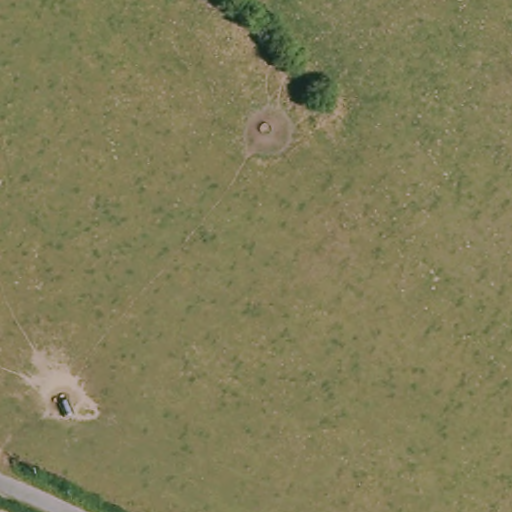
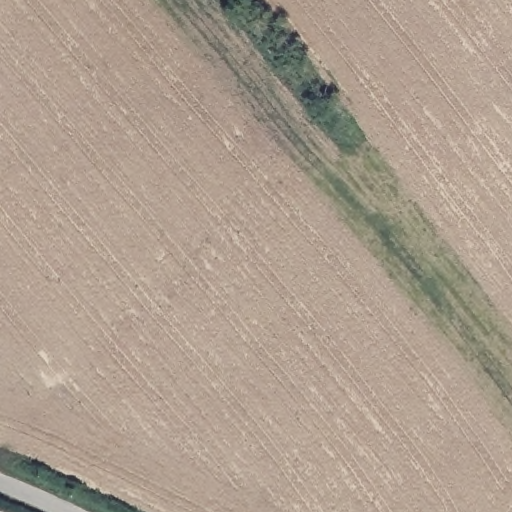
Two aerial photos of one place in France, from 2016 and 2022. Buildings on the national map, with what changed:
[]

